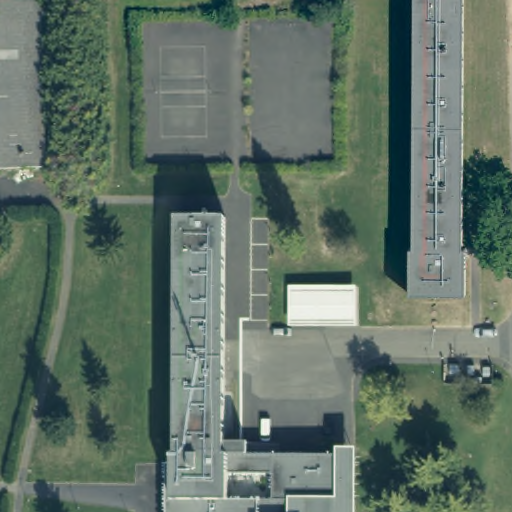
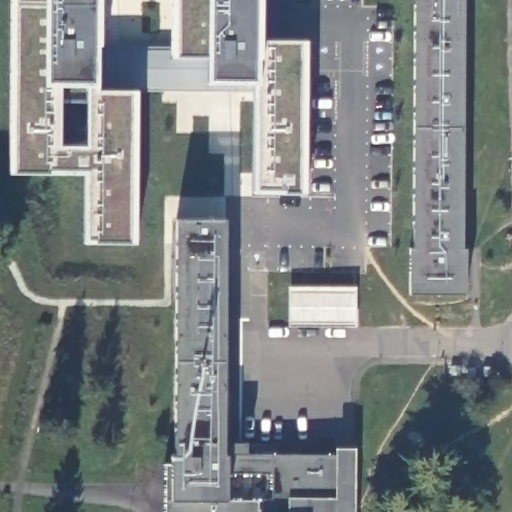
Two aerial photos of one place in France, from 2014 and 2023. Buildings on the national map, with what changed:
demolished [(44,167),(0,168),(0,0),(40,0),(44,167)]
new [(254,195),(255,92),(138,91),(138,242),(86,241),(86,171),(50,171),(50,174),(10,173),(10,0),(101,0),(101,46),(172,47),(172,0),(263,0),(263,38),(304,39),(305,195),(254,195)]
unchanged [(463,247),(467,247),(466,295),(409,294),(409,248),(413,248),(414,0),(464,0),(463,247)]
unchanged [(339,501),(293,501),(293,512),(164,512),(164,464),(170,464),(170,453),(173,454),(174,218),(224,218),(223,402),(222,443),(222,454),(265,454),(312,454),(339,454),(339,501)]
unchanged [(355,512),(293,512),(293,501),(339,501),(339,454),(335,454),(336,448),(355,448),(355,512)]

